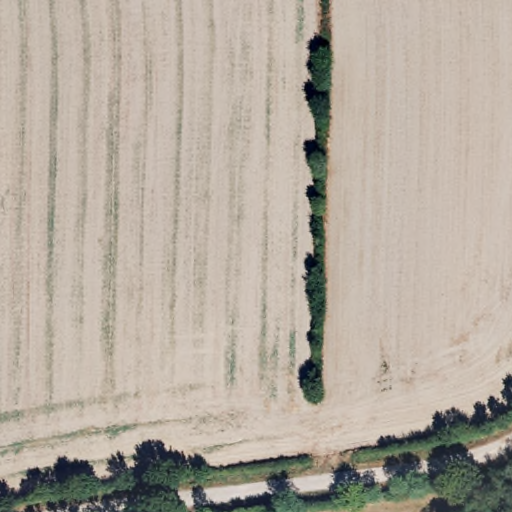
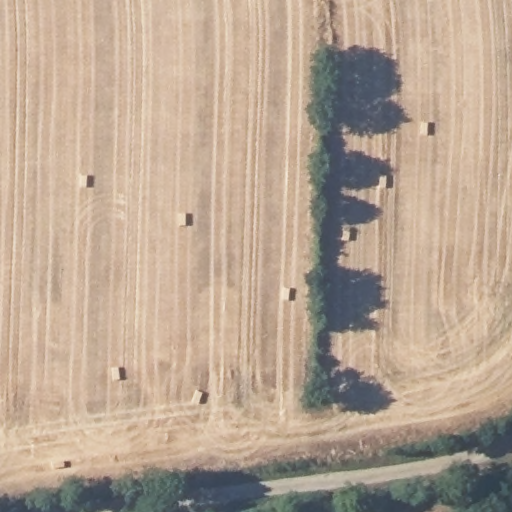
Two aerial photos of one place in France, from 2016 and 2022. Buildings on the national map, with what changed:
[]

